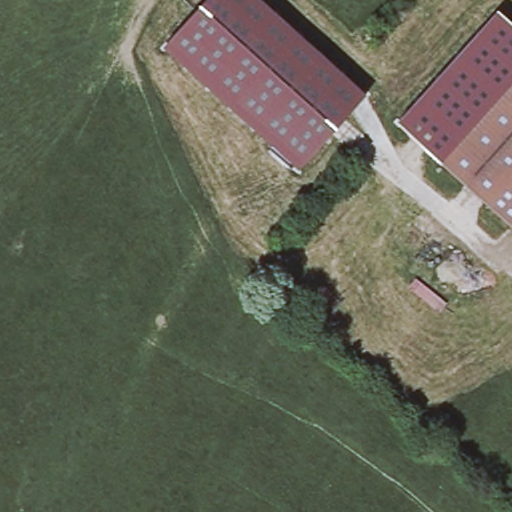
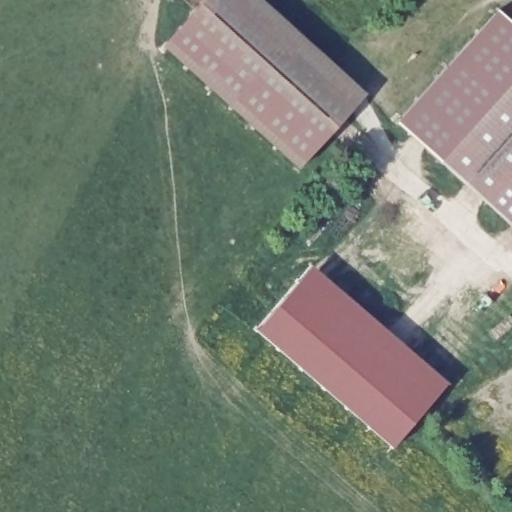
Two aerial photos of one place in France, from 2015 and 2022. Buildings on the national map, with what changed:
unchanged [(261,0),(367,94),(298,170),(163,47),(205,0),(261,0)]
unchanged [(497,5),(512,19),(512,225),(396,119),(497,5)]
new [(451,385),(397,448),(259,328),(314,266),(451,385)]

